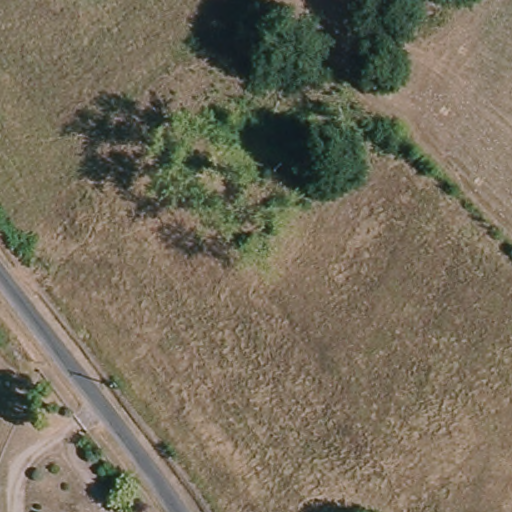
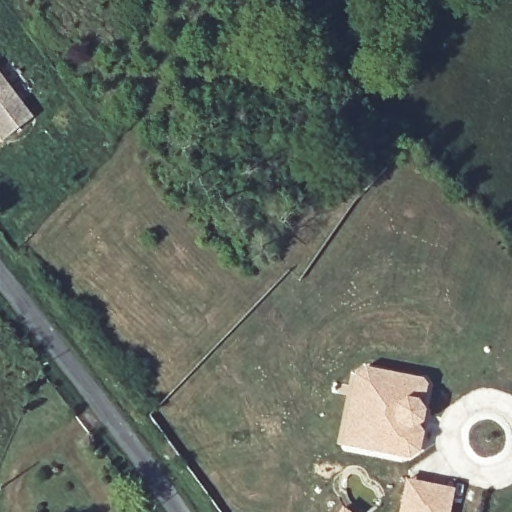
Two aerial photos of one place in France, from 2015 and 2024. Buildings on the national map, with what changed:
unchanged [(0,136),(0,74),(33,117),(3,140),(0,136)]
new [(355,374),(367,367),(422,378),(427,384),(423,410),(422,423),(423,430),(420,452),(410,459),(341,446),(355,374)]
new [(398,512),(405,479),(453,488),(449,512),(398,512)]

